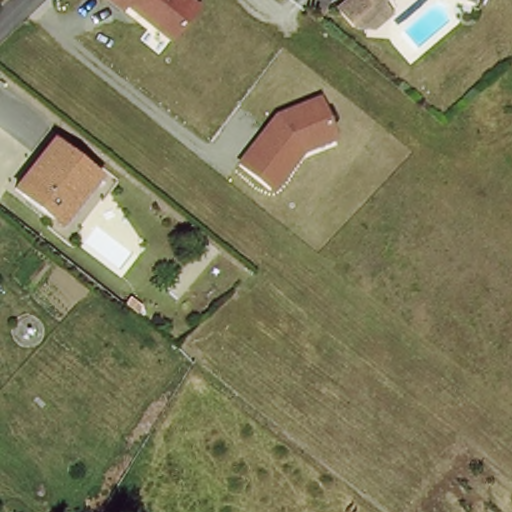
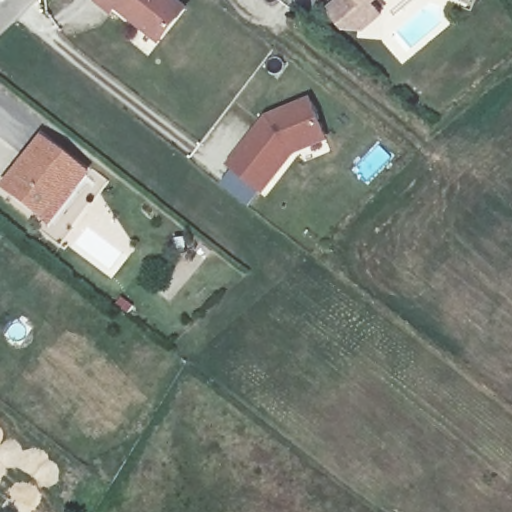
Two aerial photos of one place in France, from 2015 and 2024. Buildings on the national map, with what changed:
unchanged [(96,0),(180,0),(191,9),(162,45),(116,9),(110,15),(95,1),(96,0)]
unchanged [(370,20),(356,20),(338,4),(342,0),(383,0),(386,3),(370,20)]
unchanged [(330,142),(299,153),(267,193),(228,164),(267,114),(314,98),(330,142)]
unchanged [(43,220),(5,190),(42,142),(91,179),(80,194),(52,227),(43,220)]

